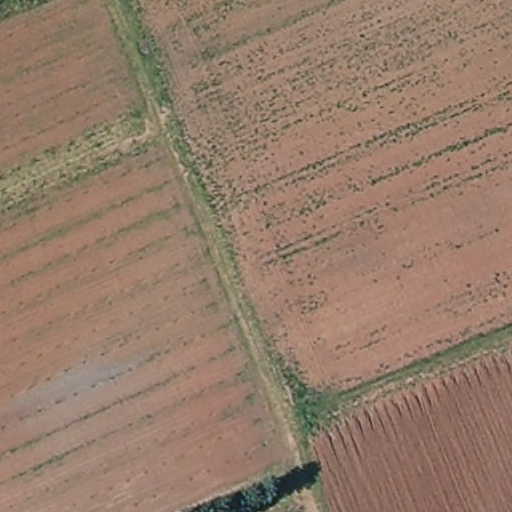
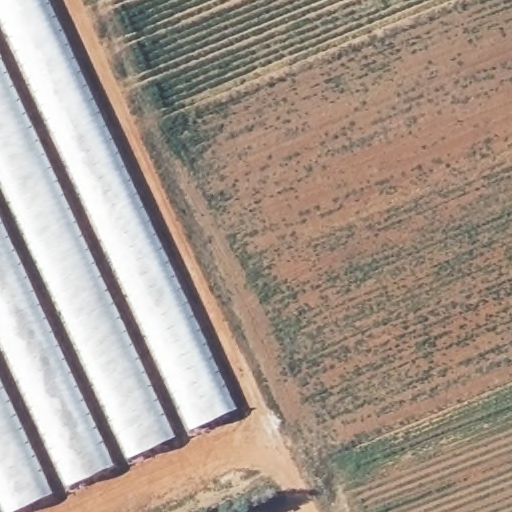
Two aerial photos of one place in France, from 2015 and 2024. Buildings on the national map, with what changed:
new [(48,0),(235,408),(10,512),(0,512),(0,0),(48,0)]

